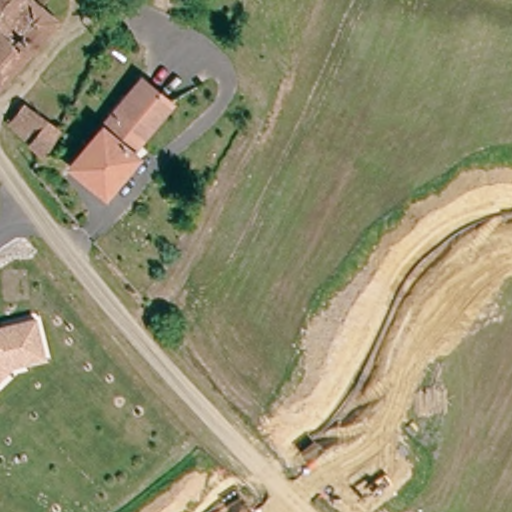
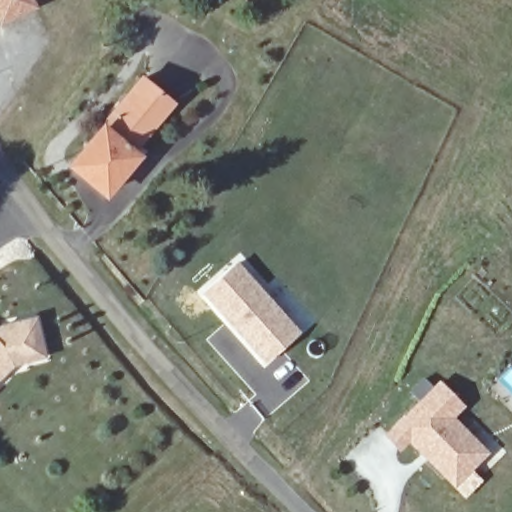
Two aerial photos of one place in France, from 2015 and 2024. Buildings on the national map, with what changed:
new [(0,22),(0,0),(35,0),(38,9),(0,22)]
demolished [(0,66),(0,0),(49,0),(55,5),(0,66)]
unchanged [(112,191),(80,167),(139,85),(152,95),(164,103),(128,151),(137,157),(125,173),(112,191)]
demolished [(39,151),(14,129),(29,112),(51,132),(39,151)]
new [(299,330),(264,362),(203,292),(235,262),(299,330)]
unchanged [(0,372),(0,324),(31,317),(40,356),(24,360),(9,363),(0,372)]
new [(465,406),(453,417),(489,452),(452,487),(408,442),(399,450),(383,433),(438,380),(465,406)]

